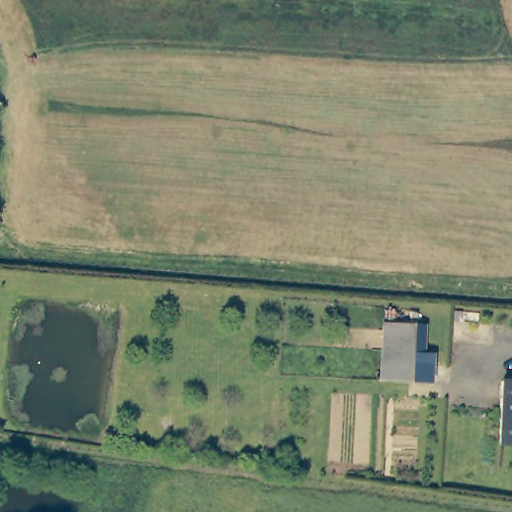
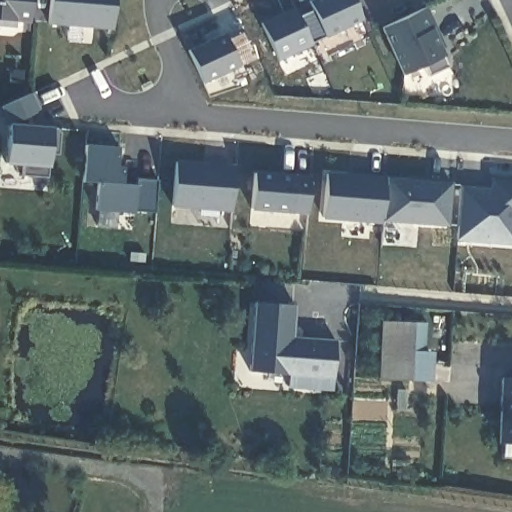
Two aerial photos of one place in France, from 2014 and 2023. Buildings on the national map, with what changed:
new [(32,0),(30,22),(0,20),(0,0),(32,0)]
new [(113,0),(111,29),(47,25),(48,0),(113,0)]
new [(275,61),(258,24),(294,9),(297,16),(310,11),(306,1),(307,0),(353,0),(362,21),(275,61)]
new [(382,28),(425,8),(447,54),(444,56),(448,65),(429,75),(424,66),(403,76),(382,28)]
new [(238,65),(202,84),(186,51),(224,35),(226,40),(240,33),(252,58),(238,65)]
new [(22,176),(22,165),(4,164),(8,124),(55,127),(61,133),(59,155),(52,153),(50,167),(48,178),(22,176)]
new [(99,210),(100,184),(82,182),(86,146),(119,148),(118,167),(125,167),(124,184),(136,185),(136,178),(158,180),(156,213),(99,210)]
new [(171,206),(175,161),(236,166),(232,212),(171,206)]
new [(252,210),(255,171),(312,175),(309,214),(252,210)]
new [(322,219),(326,173),(386,177),(383,223),(322,219)]
new [(446,227),(383,223),(386,177),(450,182),(446,227)]
new [(471,221),(486,221),(489,184),(512,185),(512,242),(470,240),(471,221)]
new [(289,389),(290,375),(250,371),(256,303),(298,306),(295,338),(335,340),(333,391),(289,389)]
unchanged [(410,382),(381,382),(383,324),(411,325),(410,382)]
new [(411,325),(424,326),(423,353),(436,353),(434,382),(410,382),(411,325)]
unchanged [(501,400),(502,376),(512,376),(512,441),(500,441),(501,400)]

